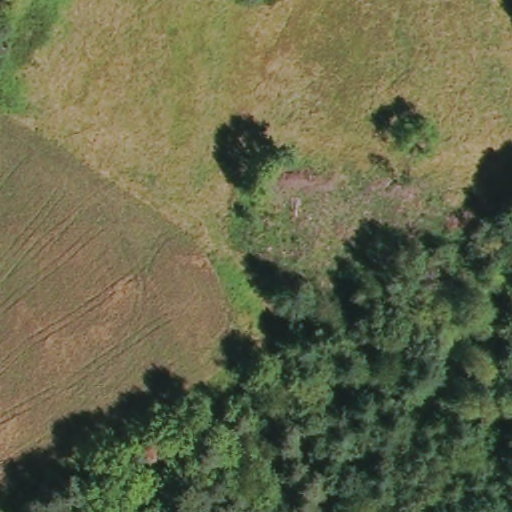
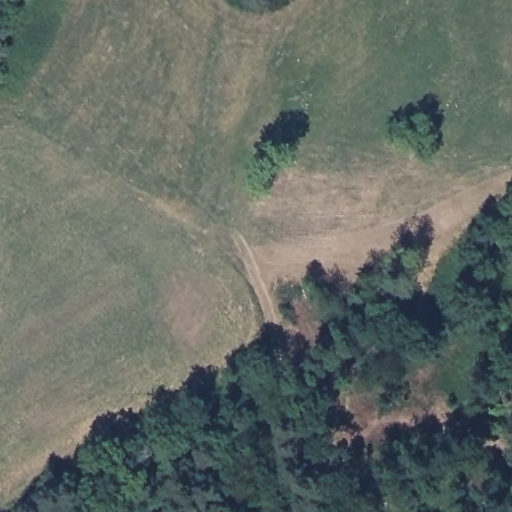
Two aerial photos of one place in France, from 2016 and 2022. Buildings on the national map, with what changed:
[]

